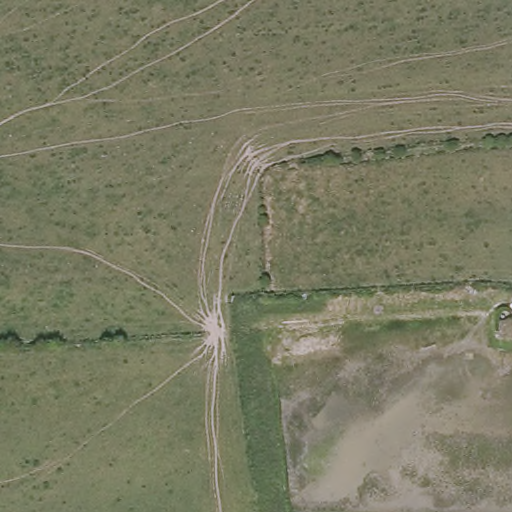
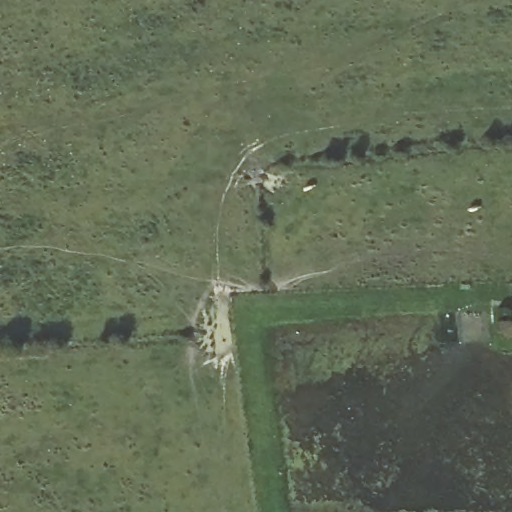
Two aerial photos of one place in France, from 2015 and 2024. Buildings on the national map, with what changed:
unchanged [(512,336),(500,336),(500,318),(512,317),(512,336)]

